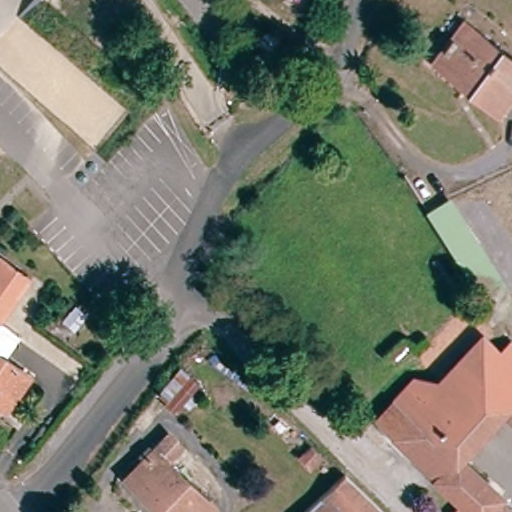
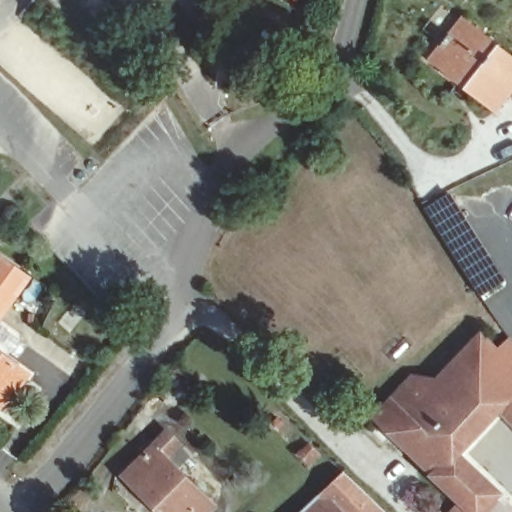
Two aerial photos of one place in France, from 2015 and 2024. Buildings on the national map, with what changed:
unchanged [(512,81),(492,107),(460,82),(468,71),(460,65),(456,70),(436,55),(462,22),(512,61),(512,81)]
unchanged [(443,198),(499,280),(481,291),(467,270),(426,210),(443,198)]
unchanged [(1,262),(28,280),(0,322),(0,263),(1,262)]
unchanged [(453,454),(494,492),(475,512),(447,512),(457,502),(370,419),(409,377),(423,390),(475,336),(491,351),(505,336),(512,346),(512,428),(494,411),(453,454)]
unchanged [(35,378),(11,410),(0,403),(0,355),(35,378)]
unchanged [(206,388),(184,416),(176,408),(197,381),(206,388)]
unchanged [(214,512),(163,512),(132,479),(174,439),(185,451),(203,470),(191,481),(217,508),(214,512)]
unchanged [(321,457),(311,466),(298,452),(308,443),(321,457)]
unchanged [(346,472),(388,512),(302,512),(346,472)]
unchanged [(512,510),(510,512),(475,512),(494,492),(512,510)]

